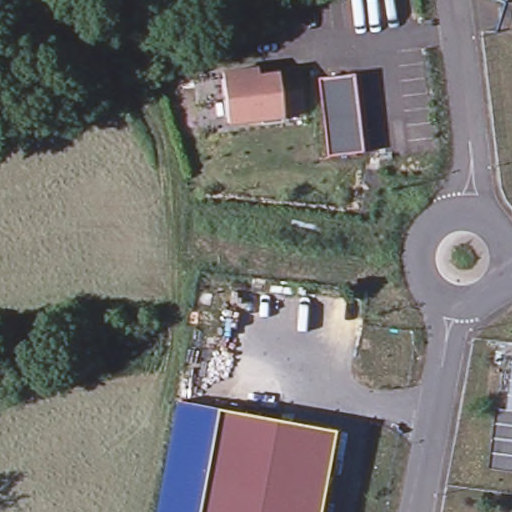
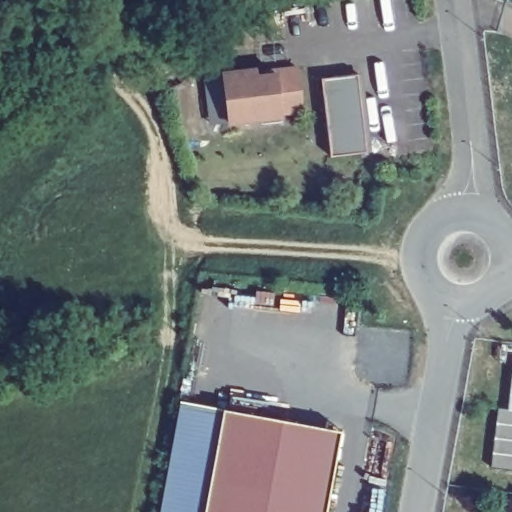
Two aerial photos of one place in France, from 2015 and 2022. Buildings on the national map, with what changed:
unchanged [(255,66),(255,73),(274,70),(273,67),(295,65),(301,108),(280,111),(280,114),(230,120),(223,70),(255,66)]
unchanged [(356,75),(365,154),(329,159),(320,80),(356,75)]
unchanged [(512,476),(503,475),(508,430),(500,429),(507,370),(512,371),(512,476)]
unchanged [(268,512),(205,512),(223,412),(282,422),(268,512)]
unchanged [(340,433),(326,512),(268,512),(282,422),(340,433)]

